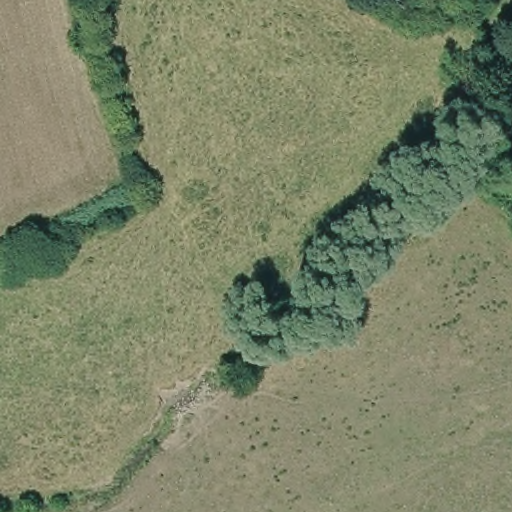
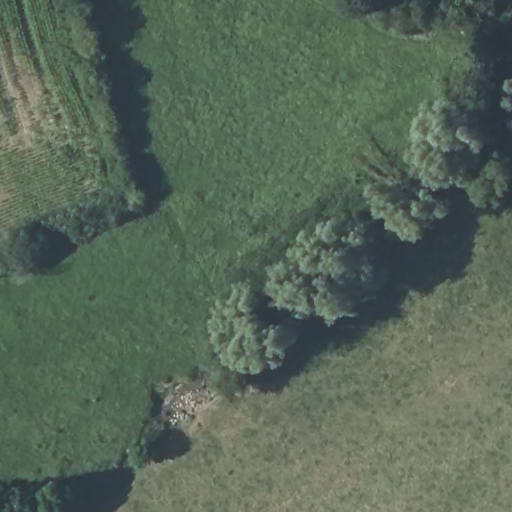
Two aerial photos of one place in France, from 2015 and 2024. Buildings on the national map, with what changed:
[]

